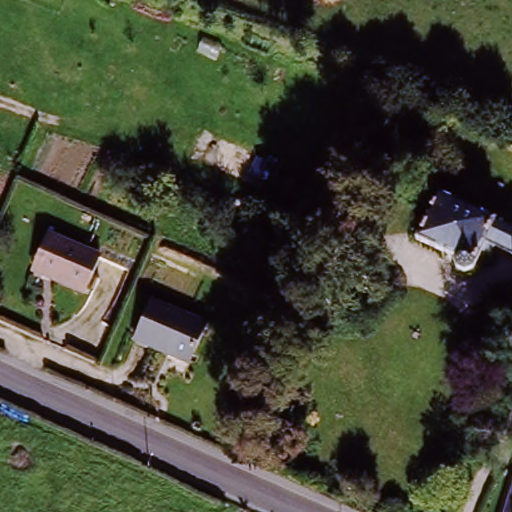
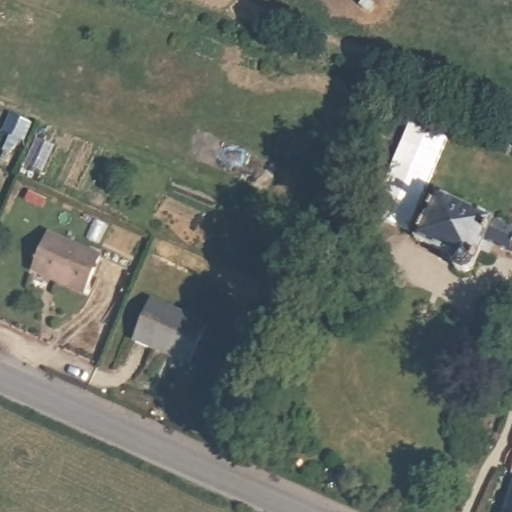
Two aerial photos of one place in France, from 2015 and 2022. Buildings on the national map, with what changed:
unchanged [(420,243),(441,197),(512,230),(512,252),(510,256),(495,249),(493,255),(488,253),(485,257),(477,254),(470,269),(462,273),(453,268),(439,262),(441,254),(420,243)]
unchanged [(83,289),(38,271),(51,235),(98,256),(83,289)]
unchanged [(133,342),(150,302),(204,325),(187,365),(133,342)]
unchanged [(507,512),(512,493),(512,512),(507,512)]

